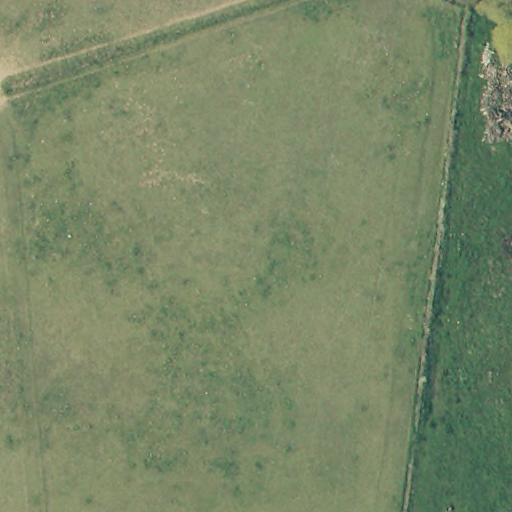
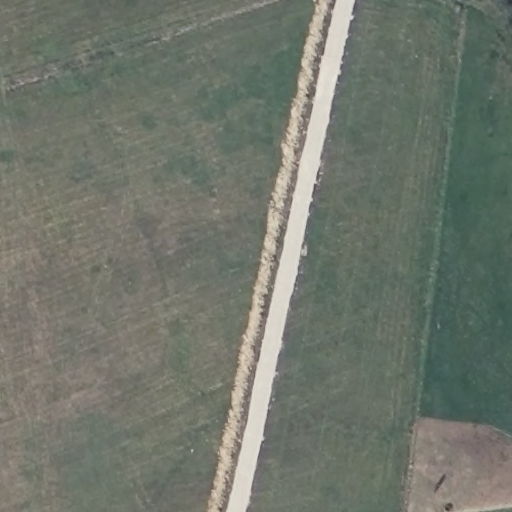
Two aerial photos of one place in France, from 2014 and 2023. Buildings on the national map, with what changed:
[]

